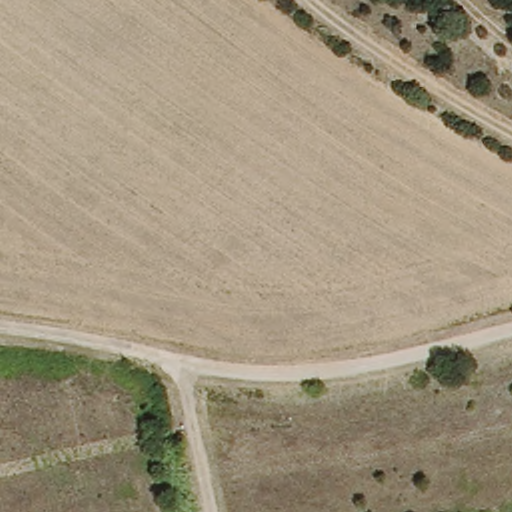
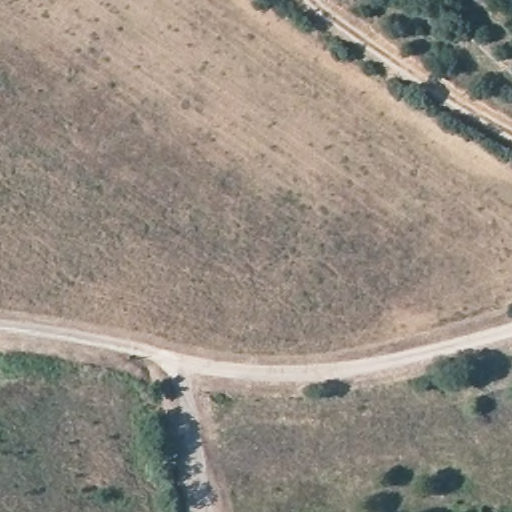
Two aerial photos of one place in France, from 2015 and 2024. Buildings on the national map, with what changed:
[]

